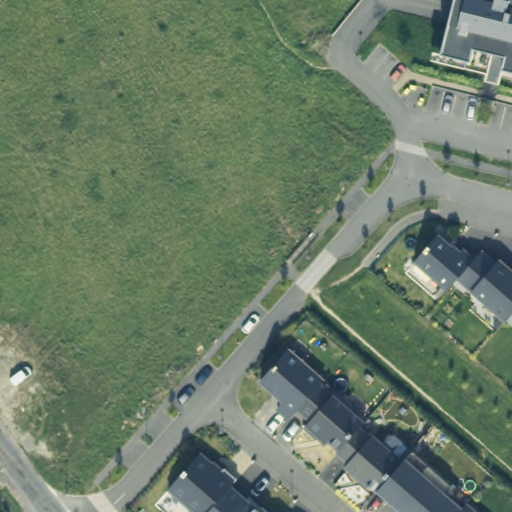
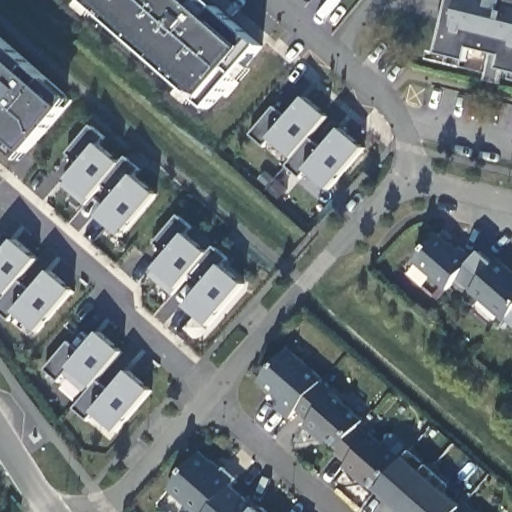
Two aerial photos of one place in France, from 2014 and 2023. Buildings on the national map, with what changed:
new [(84,0),(208,0),(262,47),(209,108),(84,0)]
unchanged [(512,72),(490,67),(488,74),(469,69),(471,62),(442,54),(455,0),(512,0),(512,72)]
new [(74,100),(21,159),(0,141),(0,34),(74,100)]
new [(306,171),(300,177),(287,167),(292,159),(269,139),(264,146),(251,135),(276,107),(288,120),(306,98),(328,117),(310,137),(325,150),(343,130),(364,148),(327,191),(306,171)]
new [(82,164),(69,152),(93,125),(107,137),(101,145),(122,164),(104,185),(87,204),(64,185),(82,164)]
new [(117,196),(104,185),(122,164),(129,156),(143,168),(136,176),(158,195),(122,236),(100,216),(117,196)]
new [(187,306),(204,285),(191,273),(173,295),(150,276),(168,256),(154,244),(179,217),(192,229),(187,236),(208,254),(214,249),(229,261),(223,268),(244,286),(210,324),(187,306)]
unchanged [(415,262),(438,235),(459,253),(463,249),(475,259),(465,270),(457,279),(447,290),(415,262)]
new [(15,239),(37,258),(19,279),(1,300),(0,299),(0,256),(15,239)]
unchanged [(475,259),(481,252),(495,265),(499,261),(512,273),(512,314),(508,319),(507,321),(457,279),(465,270),(475,259)]
new [(1,300),(19,279),(33,291),(51,270),(73,290),(36,331),(15,312),(8,319),(0,313),(0,301),(1,300)]
unchanged [(508,319),(512,314),(512,326),(507,321),(508,319)]
new [(96,414),(89,422),(73,409),(86,393),(65,374),(58,383),(43,369),(68,341),(80,353),(100,333),(122,354),(97,381),(110,393),(131,373),(151,392),(116,432),(96,414)]
unchanged [(277,408),(284,401),(261,381),(289,350),(324,381),(322,384),(299,410),(290,419),(277,408)]
unchanged [(322,434),(318,438),(306,426),(311,421),(299,410),(322,384),(365,422),(360,427),(356,432),(342,447),(340,450),(322,434)]
unchanged [(340,450),(342,447),(356,432),(360,427),(371,437),(373,435),(403,461),(394,472),(378,490),(376,492),(360,477),(358,479),(345,467),(348,463),(337,453),(340,450)]
unchanged [(388,491),(384,496),(378,490),(394,472),(403,461),(412,451),(449,484),(442,491),(462,508),(459,512),(398,512),(404,505),(388,491)]
unchanged [(222,471),(224,468),(237,479),(231,486),(217,503),(208,512),(193,512),(168,490),(201,453),(222,471)]
unchanged [(262,508),(266,512),(208,512),(217,503),(231,486),(256,508),(262,508)]
unchanged [(459,512),(462,508),(466,504),(474,512),(459,512)]

